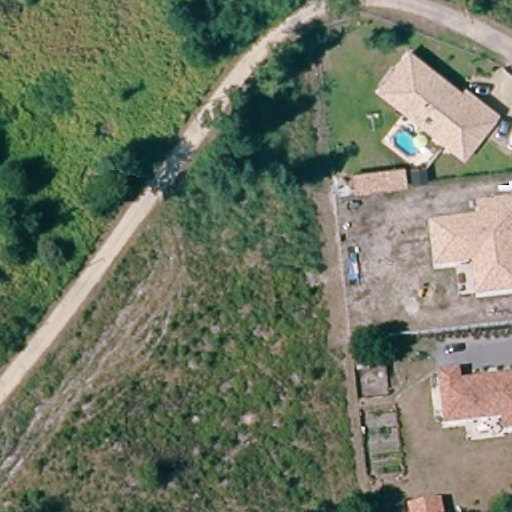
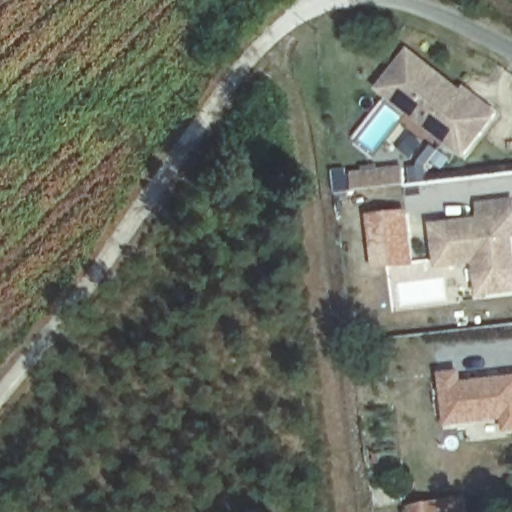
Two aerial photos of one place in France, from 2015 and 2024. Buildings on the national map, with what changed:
unchanged [(382,87),(413,53),(470,105),(473,101),(494,121),(459,159),(431,133),(409,113),(382,87)]
unchanged [(409,169),(410,186),(358,189),(357,173),(409,169)]
unchanged [(440,267),(437,228),(484,221),(482,207),(512,203),(512,291),(481,295),(478,262),(440,267)]
new [(412,263),(374,267),(368,214),(407,211),(412,263)]
unchanged [(505,419),(449,426),(442,373),(464,371),(464,382),(512,377),(512,431),(507,432),(505,419)]
new [(450,499),(452,512),(427,512),(426,502),(450,499)]

